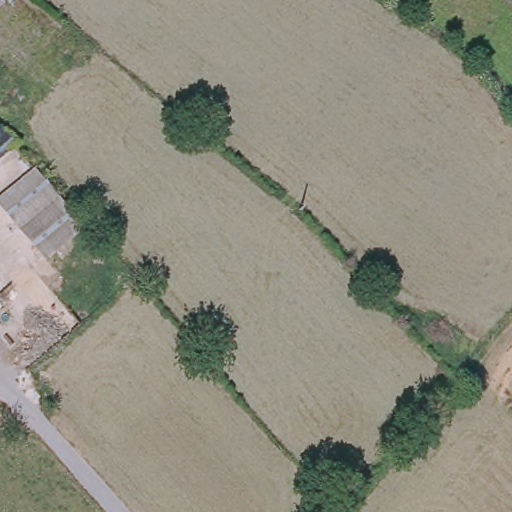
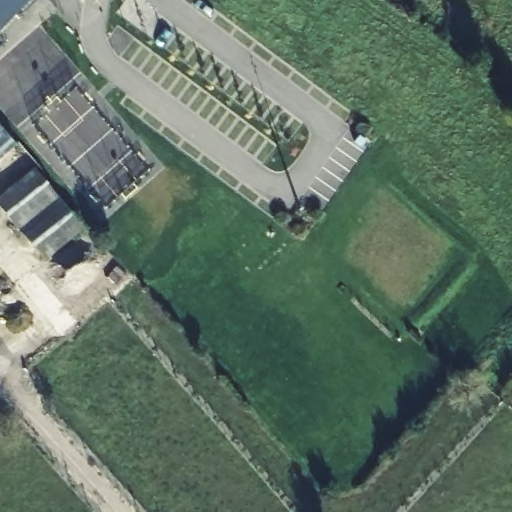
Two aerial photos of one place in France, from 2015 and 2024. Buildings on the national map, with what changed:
new [(0,30),(0,0),(30,0),(0,30)]
new [(0,39),(6,45),(0,50),(0,39)]
unchanged [(0,159),(0,127),(15,145),(0,159)]
unchanged [(19,228),(0,206),(0,196),(33,168),(57,197),(50,203),(19,228)]
unchanged [(84,227),(45,259),(20,230),(59,198),(84,227)]

